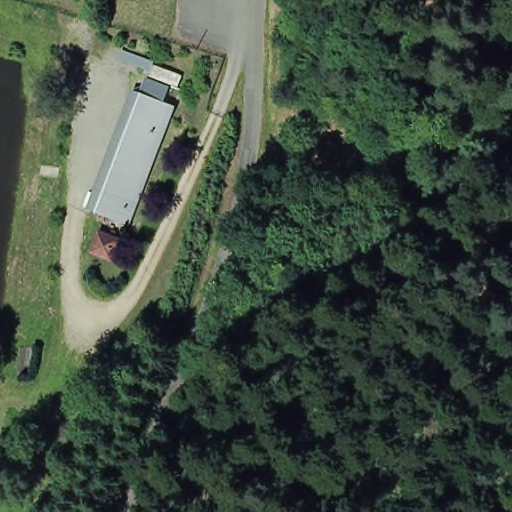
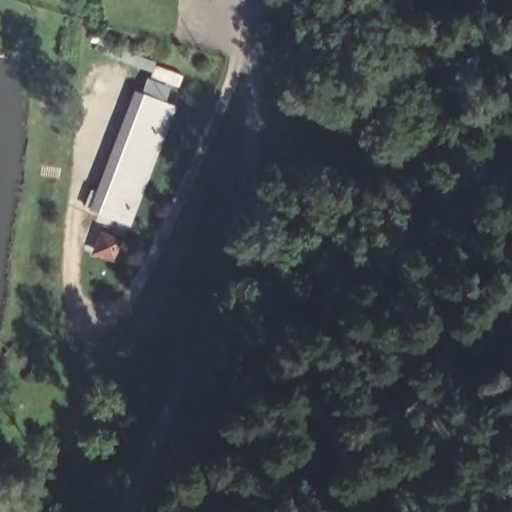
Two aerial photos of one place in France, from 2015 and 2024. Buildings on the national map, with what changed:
unchanged [(134,88),(174,102),(126,226),(90,206),(134,88)]

